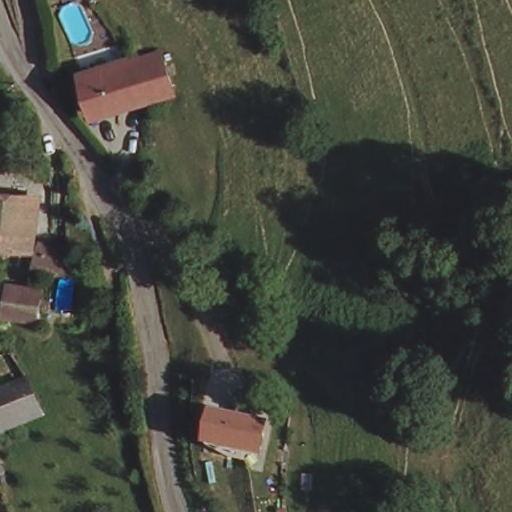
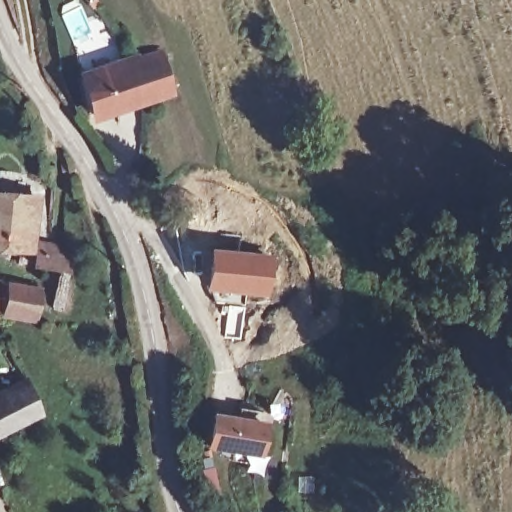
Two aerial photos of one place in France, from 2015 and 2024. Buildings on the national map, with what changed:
unchanged [(162,53),(167,96),(86,106),(80,63),(162,53)]
unchanged [(27,241),(17,241),(17,243),(0,243),(0,195),(24,195),(24,198),(30,198),(27,241)]
new [(210,246),(279,256),(271,300),(206,291),(210,246)]
unchanged [(69,260),(63,280),(40,273),(32,270),(39,251),(69,260)]
unchanged [(36,285),(37,314),(0,316),(0,286),(36,285)]
unchanged [(42,402),(0,431),(0,387),(20,373),(42,402)]
unchanged [(270,423),(262,458),(203,447),(212,411),(270,423)]

